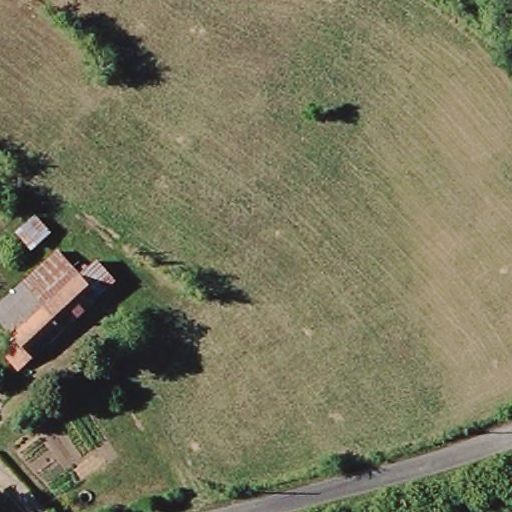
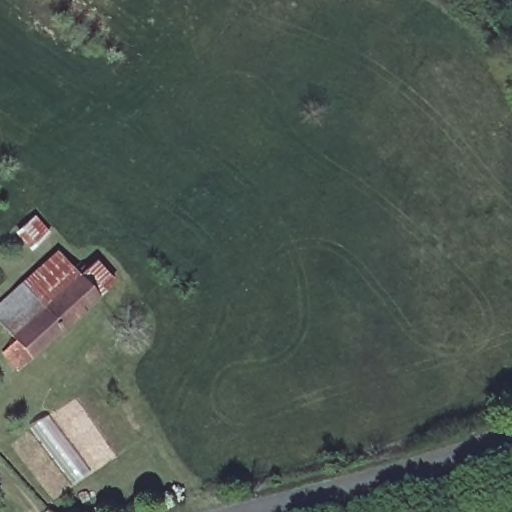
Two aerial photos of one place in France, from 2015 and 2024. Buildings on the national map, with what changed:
unchanged [(97,267),(115,288),(19,372),(4,356),(20,344),(1,322),(0,321),(0,305),(24,285),(57,256),(80,282),(97,267)]

